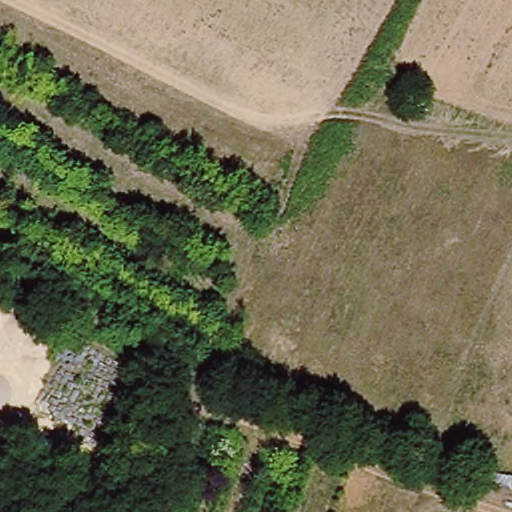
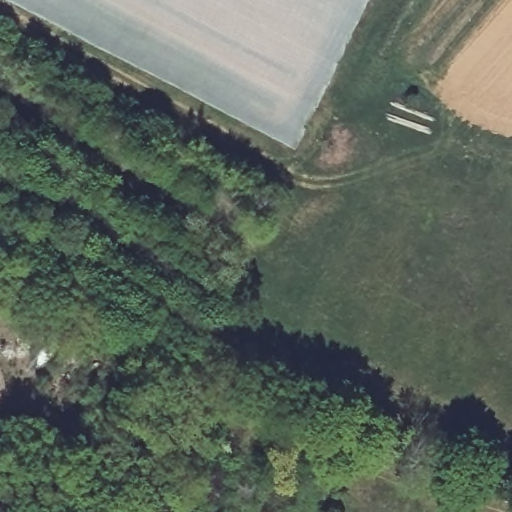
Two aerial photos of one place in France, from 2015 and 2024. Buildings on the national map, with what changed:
new [(5,0),(367,0),(295,149),(5,0)]

